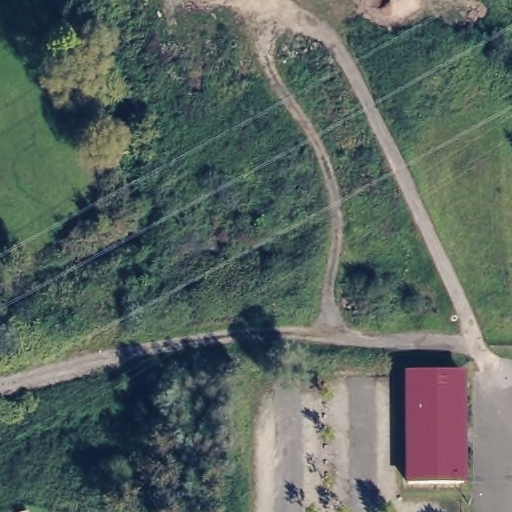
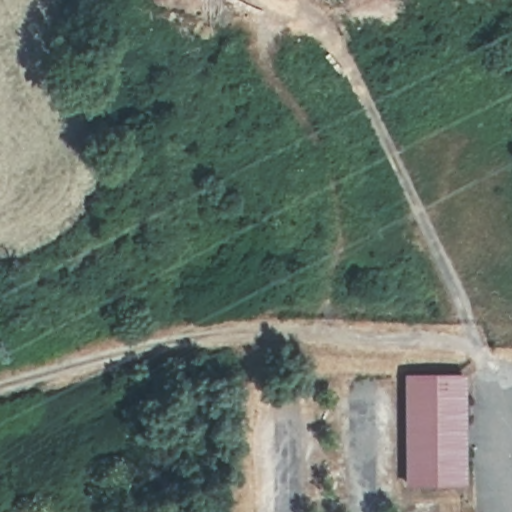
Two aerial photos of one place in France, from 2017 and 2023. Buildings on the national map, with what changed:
unchanged [(467,483),(412,483),(412,375),(467,374),(467,483)]

